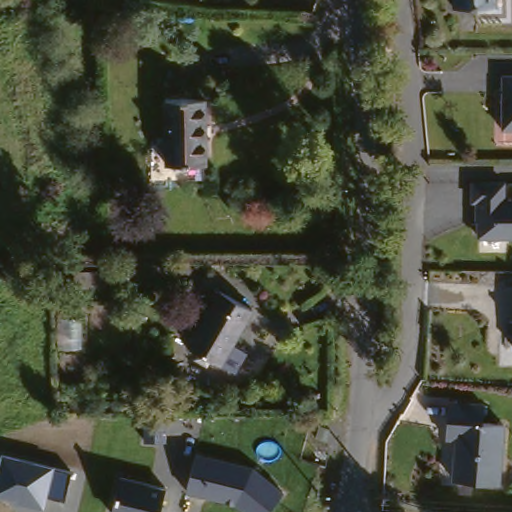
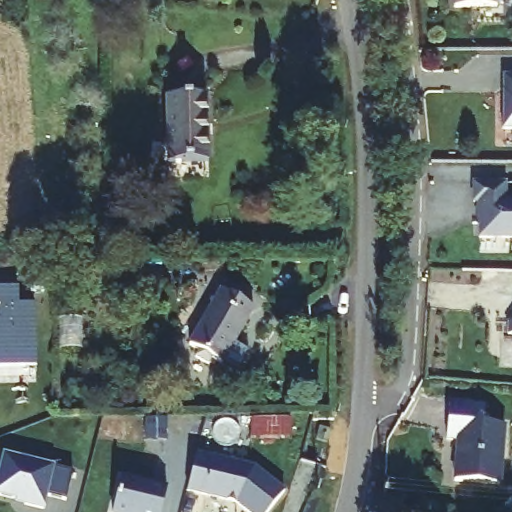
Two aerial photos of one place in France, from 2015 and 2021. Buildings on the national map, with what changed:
unchanged [(490,7),(449,6),(449,0),(490,0),(490,7)]
unchanged [(512,88),(512,126),(499,125),(499,88),(512,88)]
unchanged [(169,95),(208,96),(203,163),(164,161),(169,95)]
unchanged [(506,200),(512,200),(512,236),(478,236),(478,201),(474,201),(474,182),(506,182),(506,200)]
unchanged [(70,282),(103,284),(101,303),(69,301),(70,282)]
unchanged [(193,349),(196,340),(190,335),(214,295),(209,292),(216,282),(254,305),(224,356),(213,350),(207,358),(193,349)]
new [(19,305),(34,304),(37,367),(0,369),(0,320),(1,320),(1,306),(0,306),(0,288),(18,288),(19,305)]
unchanged [(504,318),(512,318),(512,331),(504,331),(504,318)]
unchanged [(486,416),(508,416),(505,476),(460,475),(461,433),(451,432),(452,396),(487,398),(486,416)]
unchanged [(254,465),(286,492),(269,512),(244,512),(236,505),(186,492),(196,450),(254,465)]
unchanged [(3,452),(73,469),(66,501),(48,496),(44,509),(0,496),(0,462),(3,452)]
unchanged [(166,487),(161,512),(111,512),(121,475),(166,487)]

